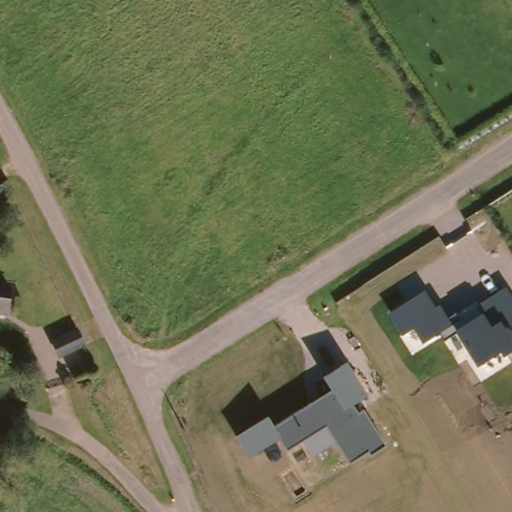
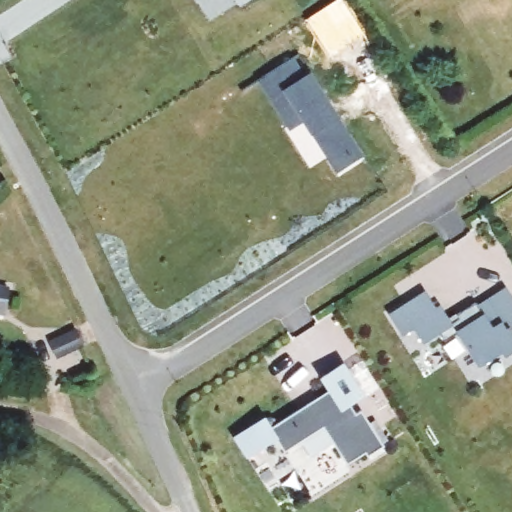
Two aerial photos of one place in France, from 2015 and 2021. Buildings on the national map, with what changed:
new [(236,0),(245,0),(238,4),(236,0)]
new [(335,172),(309,132),(302,120),(287,130),(257,80),(297,55),(309,71),(340,118),(363,155),(335,172)]
unchanged [(5,286),(1,313),(0,313),(0,285),(5,286)]
unchanged [(423,343),(413,328),(402,335),(388,313),(426,290),(436,305),(440,302),(450,318),(507,285),(512,292),(512,353),(505,356),(502,353),(479,366),(456,331),(445,341),(440,333),(423,343)]
unchanged [(51,364),(44,347),(69,336),(70,337),(77,353),(51,364)]
unchanged [(333,442),(310,455),(301,440),(285,450),(278,439),(245,458),(233,436),(266,415),(272,425),(329,390),(319,377),(345,361),(365,395),(351,405),(356,414),(362,410),(384,445),(368,453),(365,450),(348,462),(333,442)]

